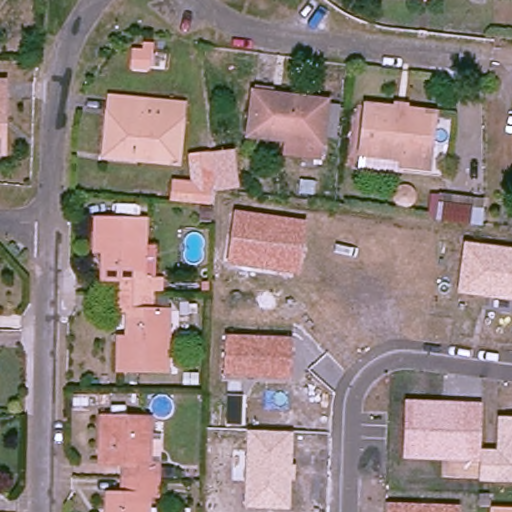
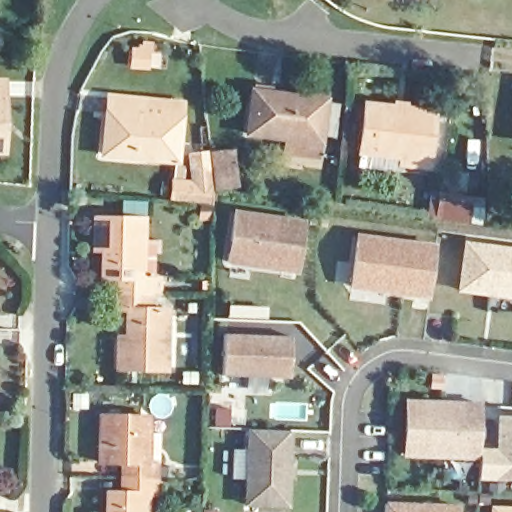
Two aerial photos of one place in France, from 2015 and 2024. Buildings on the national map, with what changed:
unchanged [(4,108),(0,109),(0,79),(4,79),(4,108)]
unchanged [(247,131),(253,89),(324,98),(318,141),(247,131)]
unchanged [(107,114),(110,100),(183,106),(178,166),(139,163),(105,160),(107,114)]
unchanged [(428,166),(399,162),(402,156),(359,149),(366,104),(436,114),(428,166)]
unchanged [(283,157),(284,136),(318,141),(317,161),(283,157)]
unchanged [(212,192),(211,206),(167,203),(168,180),(191,181),(189,156),(234,151),(240,189),(212,192)]
unchanged [(433,224),(439,194),(488,201),(483,231),(433,224)]
unchanged [(307,221),(299,272),(228,262),(236,211),(307,221)]
unchanged [(123,298),(124,283),(106,281),(107,254),(97,252),(100,221),(148,223),(146,281),(158,284),(157,298),(123,298)]
new [(364,234),(442,245),(435,294),(357,284),(364,234)]
unchanged [(512,299),(459,293),(463,242),(512,249),(512,299)]
unchanged [(157,314),(172,317),(170,374),(120,374),(120,341),(130,340),(132,315),(122,314),(123,298),(157,298),(157,314)]
unchanged [(226,337),(291,339),(290,378),(223,376),(226,337)]
unchanged [(512,420),(512,482),(477,481),(478,460),(401,458),(405,400),(483,404),(482,450),(497,451),(497,420),(512,420)]
unchanged [(127,477),(127,462),(104,461),(104,420),(154,420),(153,461),(161,462),(161,478),(127,477)]
unchanged [(293,462),(296,463),(296,482),(290,482),(289,509),(254,507),(243,507),(246,431),(290,433),(294,433),(293,462)]
unchanged [(159,493),(152,496),(152,512),(110,512),(110,495),(126,494),(127,477),(161,478),(159,493)]
unchanged [(460,506),(460,512),(387,512),(387,503),(460,506)]
unchanged [(491,507),(512,508),(512,512),(491,512),(491,507)]

